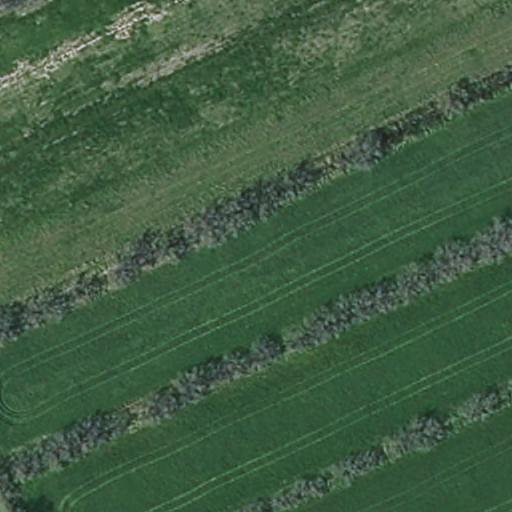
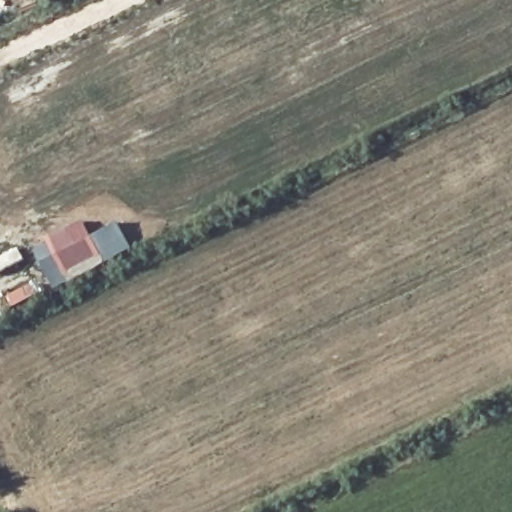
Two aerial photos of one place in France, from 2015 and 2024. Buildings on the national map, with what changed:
new [(55,290),(35,249),(49,244),(47,239),(84,222),(93,239),(119,223),(133,249),(55,290)]

